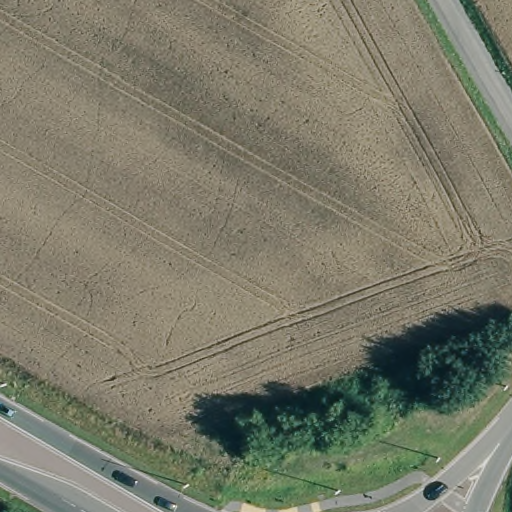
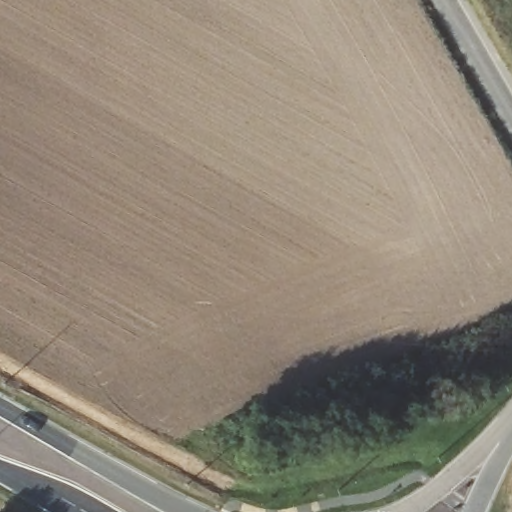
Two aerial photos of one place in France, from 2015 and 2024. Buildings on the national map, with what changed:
[]

